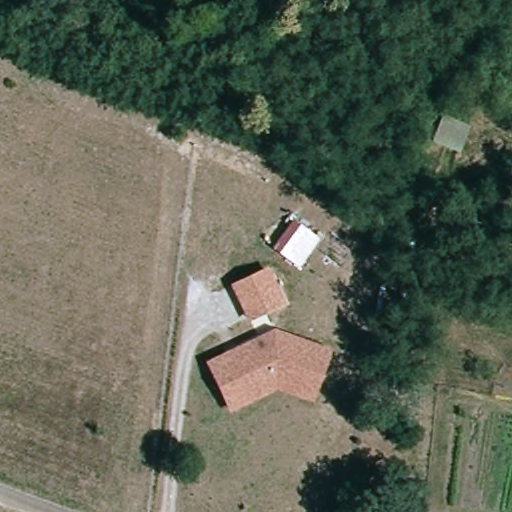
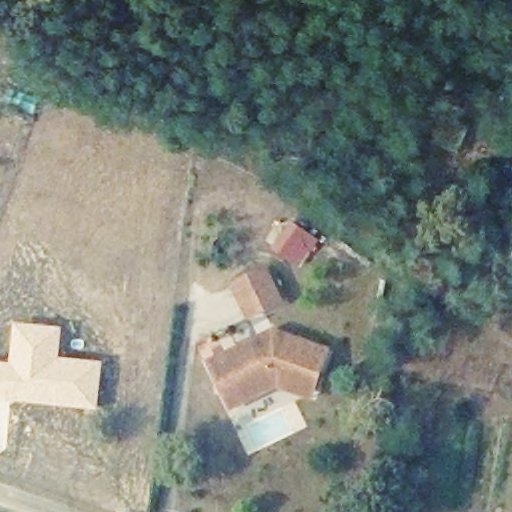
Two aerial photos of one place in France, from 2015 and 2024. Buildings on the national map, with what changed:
unchanged [(470,125),(460,152),(432,140),(442,114),(470,125)]
unchanged [(320,237),(299,265),(273,247),(293,219),(320,237)]
unchanged [(286,303),(248,321),(230,284),(268,266),(286,303)]
new [(9,362),(14,321),(63,327),(60,357),(103,361),(98,410),(0,400),(0,361),(9,362)]
unchanged [(312,400),(278,390),(230,411),(207,361),(273,330),(331,348),(312,400)]

